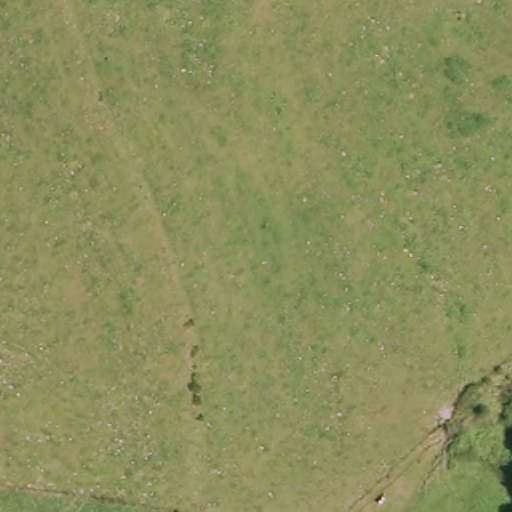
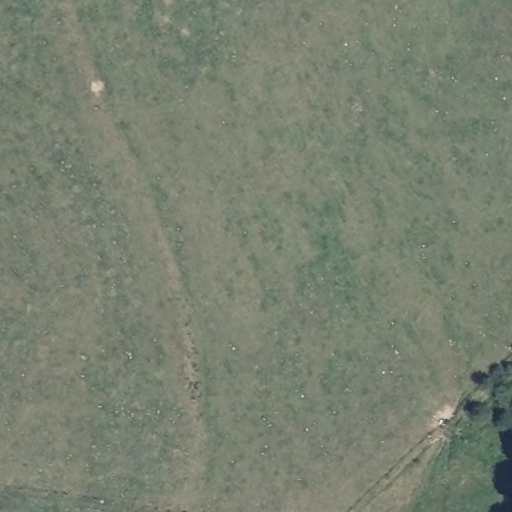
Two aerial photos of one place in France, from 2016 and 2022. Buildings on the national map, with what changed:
[]

